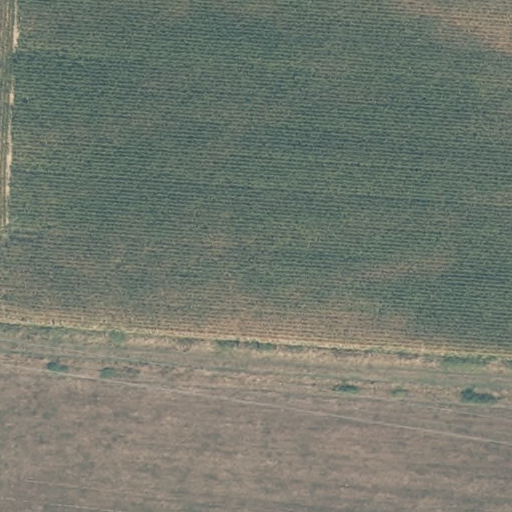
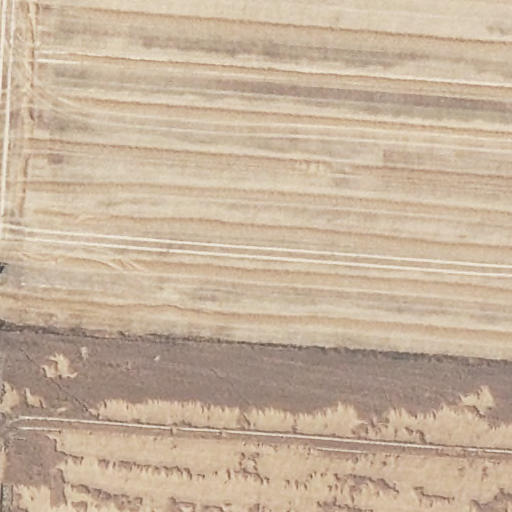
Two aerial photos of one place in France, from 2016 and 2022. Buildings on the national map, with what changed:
[]

